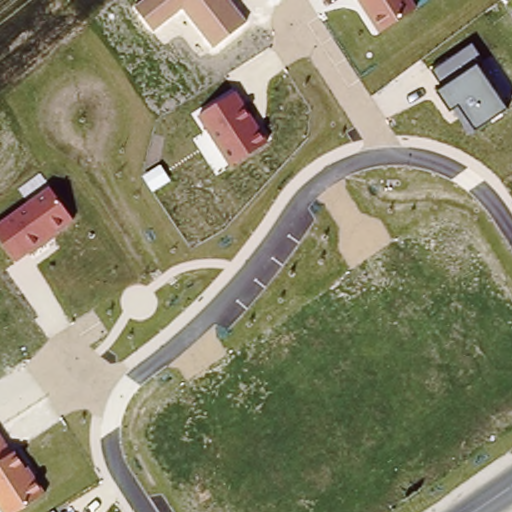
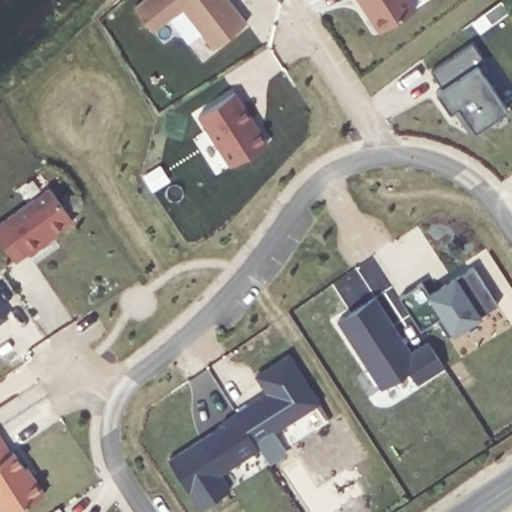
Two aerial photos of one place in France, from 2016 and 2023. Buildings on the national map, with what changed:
unchanged [(183,9),(154,31),(134,6),(142,0),(229,0),(247,21),(213,50),(183,9)]
unchanged [(379,33),(357,0),(411,0),(417,9),(379,33)]
unchanged [(470,45),(482,62),(477,65),(507,109),(475,130),(459,106),(450,111),(437,91),(444,87),(432,71),(470,45)]
unchanged [(267,141),(231,161),(198,111),(237,91),(267,141)]
new [(159,167),(169,181),(150,194),(140,180),(159,167)]
unchanged [(73,220),(57,232),(59,235),(30,255),(29,254),(17,261),(0,238),(0,222),(49,188),(73,220)]
new [(422,280),(427,294),(456,276),(472,268),(497,305),(481,316),(452,335),(440,316),(419,328),(399,295),(422,280)]
new [(376,297),(412,351),(427,341),(444,367),(418,384),(409,370),(380,388),(337,320),(376,297)]
new [(10,316),(0,323),(0,301),(10,316)]
new [(224,423),(222,420),(265,391),(256,374),(290,353),(319,403),(255,444),(259,450),(220,474),(231,490),(199,510),(169,460),(224,423)]
unchanged [(12,452),(17,450),(45,493),(17,512),(2,512),(0,508),(0,434),(12,452)]

